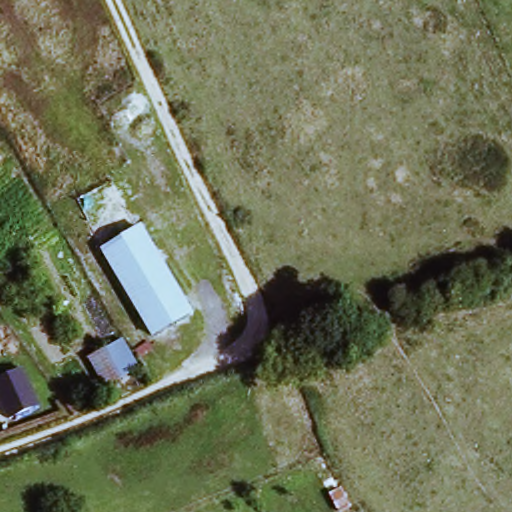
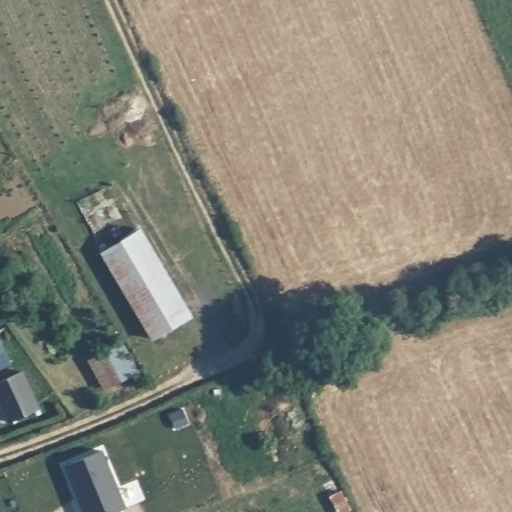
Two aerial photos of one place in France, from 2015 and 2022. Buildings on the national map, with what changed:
unchanged [(142,229),(192,315),(152,340),(125,297),(97,252),(142,229)]
unchanged [(107,348),(123,374),(105,385),(88,360),(107,348)]
unchanged [(0,395),(0,378),(22,367),(41,403),(12,418),(0,395)]
new [(124,507),(111,512),(84,512),(65,467),(100,451),(124,507)]

